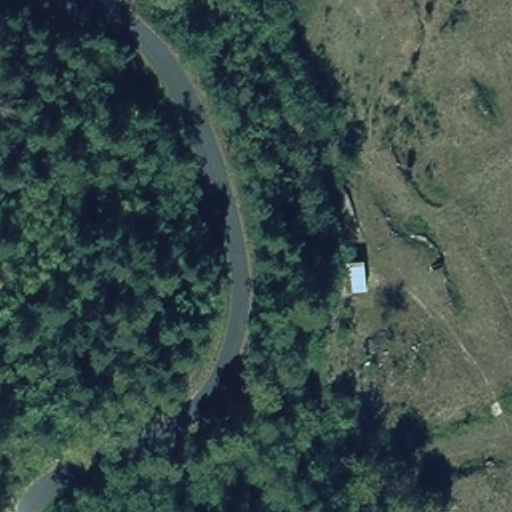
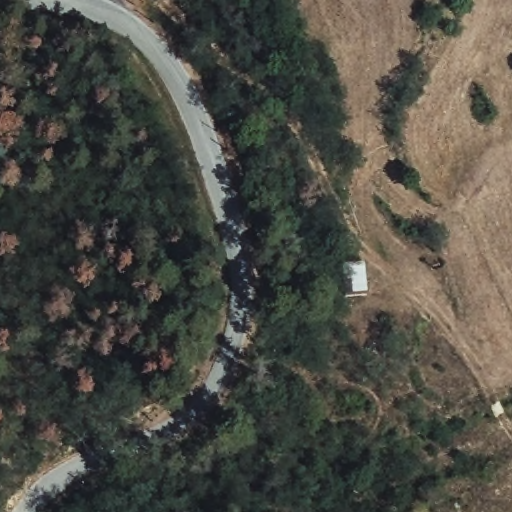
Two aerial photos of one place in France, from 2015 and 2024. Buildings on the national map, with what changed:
unchanged [(367,291),(344,291),(341,260),(365,260),(367,291)]

